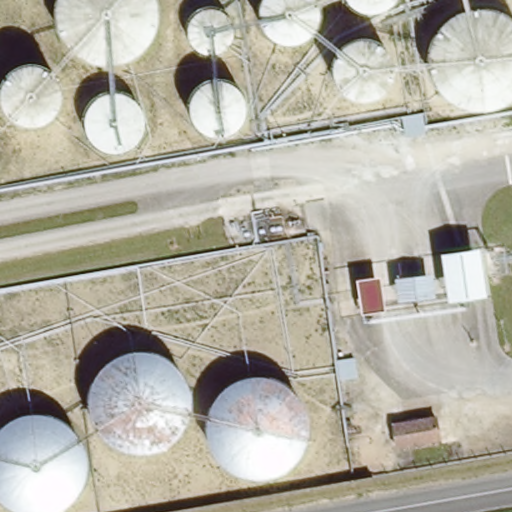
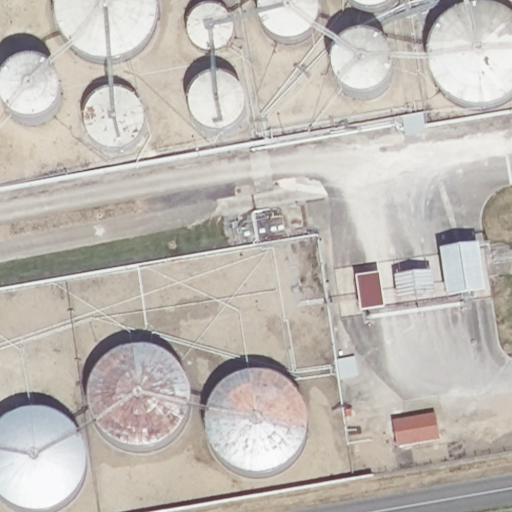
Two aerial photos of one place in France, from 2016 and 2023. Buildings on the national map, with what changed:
unchanged [(480,247),(486,300),(447,306),(441,256),(480,247)]
unchanged [(417,271),(417,290),(340,296),(339,282),(417,271)]
unchanged [(437,417),(440,437),(397,444),(394,423),(437,417)]

